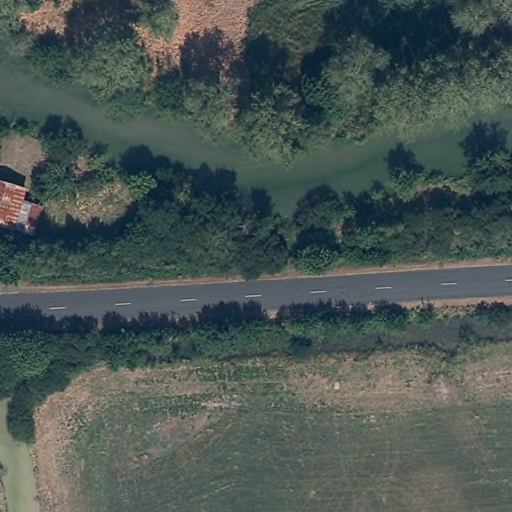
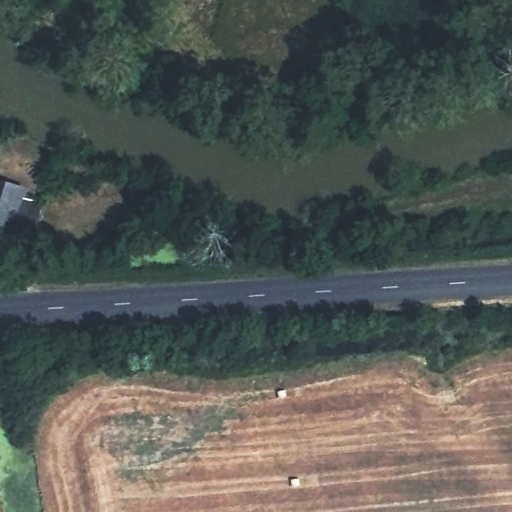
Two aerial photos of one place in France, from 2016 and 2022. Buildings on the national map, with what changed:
unchanged [(16,236),(0,233),(0,194),(26,199),(24,207),(41,212),(36,240),(16,236)]

